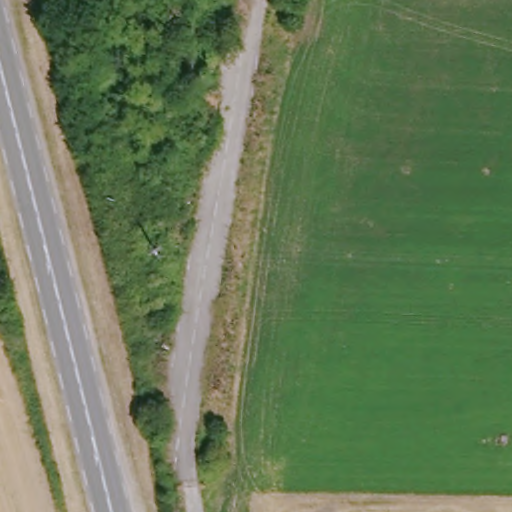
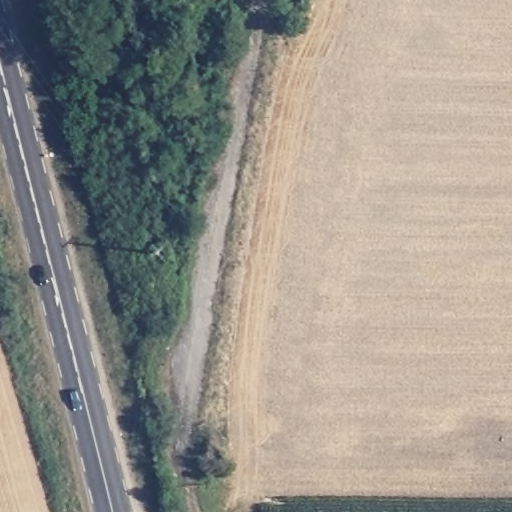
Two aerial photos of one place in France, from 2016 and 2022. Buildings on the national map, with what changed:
unchanged [(209,79),(193,80),(188,42),(215,39),(209,79)]
unchanged [(194,92),(174,94),(173,82),(193,80),(194,92)]

